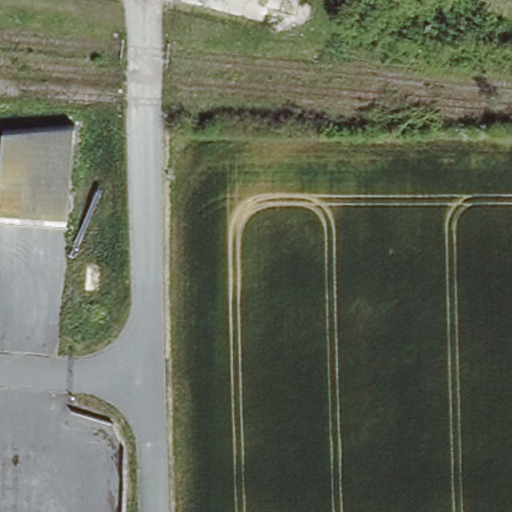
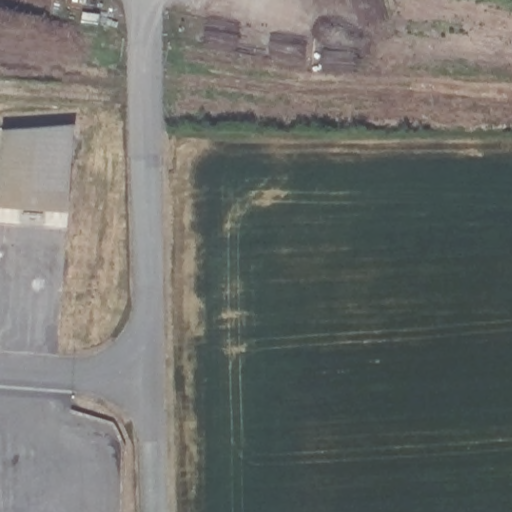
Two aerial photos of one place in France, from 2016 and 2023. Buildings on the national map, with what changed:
unchanged [(44,141),(68,140),(63,212),(0,208),(0,139),(44,141)]

